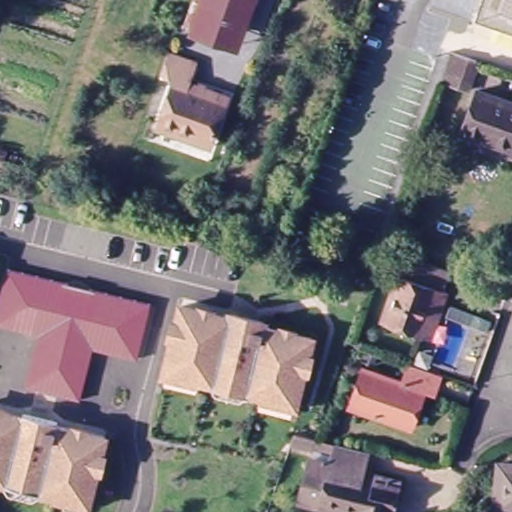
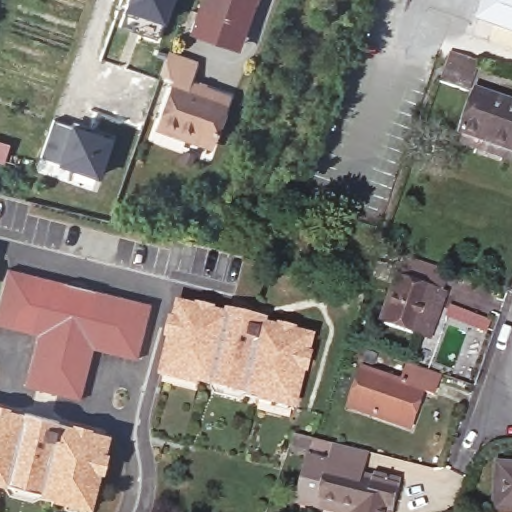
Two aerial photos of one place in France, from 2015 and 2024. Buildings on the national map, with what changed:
new [(175,0),(164,25),(120,11),(123,0),(175,0)]
unchanged [(194,40),(208,0),(259,0),(239,57),(194,40)]
unchanged [(490,43),(496,26),(476,20),(483,0),(512,0),(512,51),(490,43)]
unchanged [(442,92),(455,58),(482,67),(471,101),(442,92)]
unchanged [(193,146),(160,135),(177,87),(162,82),(170,60),(196,70),(189,90),(230,105),(215,146),(212,153),(193,146)]
unchanged [(471,141),(485,100),(512,109),(512,154),(471,141)]
new [(51,119),(114,138),(100,178),(40,158),(51,119)]
unchanged [(2,163),(0,162),(0,148),(7,150),(2,163)]
unchanged [(420,340),(380,326),(405,255),(450,270),(443,290),(448,292),(440,312),(430,343),(420,340)]
unchanged [(99,339),(86,390),(27,376),(40,324),(0,314),(0,299),(9,265),(155,301),(143,350),(99,339)]
unchanged [(490,320),(487,329),(450,316),(453,306),(490,320)]
unchanged [(309,355),(313,356),(310,372),(305,371),(296,405),(275,400),(275,398),(244,390),(242,392),(200,381),(200,379),(189,376),(188,378),(166,373),(175,339),(170,338),(174,322),(179,323),(182,307),(313,340),(309,355)]
unchanged [(419,393),(407,430),(347,408),(360,370),(398,383),(405,363),(440,374),(431,397),(419,393)]
unchanged [(105,455),(101,471),(97,470),(89,504),(66,498),(67,496),(35,488),(35,490),(0,482),(0,412),(105,438),(101,454),(105,455)]
unchanged [(300,501),(308,467),(331,471),(335,457),(310,451),(290,446),(295,435),(315,440),(337,445),(370,452),(362,482),(375,485),(377,477),(403,483),(396,512),(322,512),(323,507),(300,501)]
unchanged [(492,511),(495,470),(512,471),(512,512),(492,512),(492,511)]

